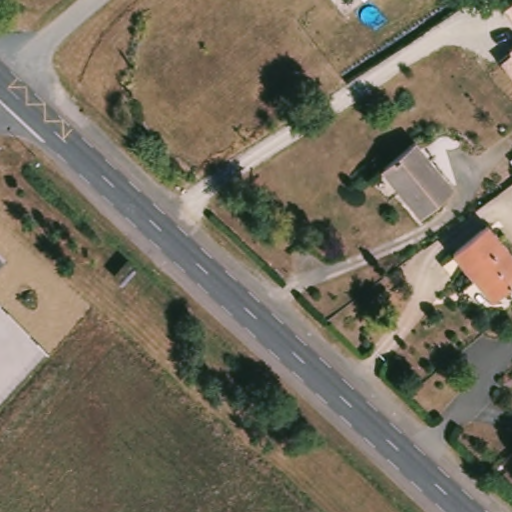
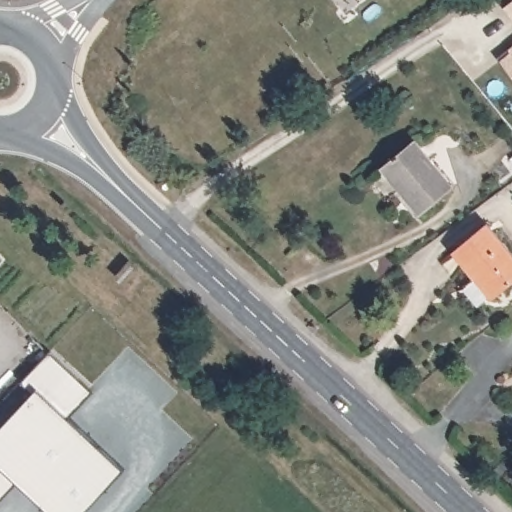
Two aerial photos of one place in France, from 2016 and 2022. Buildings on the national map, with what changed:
unchanged [(502,10),(512,2),(512,22),(502,10)]
unchanged [(500,62),(510,54),(508,50),(512,46),(512,78),(500,62)]
unchanged [(419,140),(455,185),(422,211),(386,165),(419,140)]
unchanged [(486,224),(512,256),(512,279),(489,299),(452,254),(486,224)]
unchanged [(0,262),(0,258),(2,260),(0,262)]
new [(66,416),(123,468),(82,512),(50,512),(16,480),(0,497),(0,427),(31,394),(18,385),(49,351),(92,391),(66,416)]

